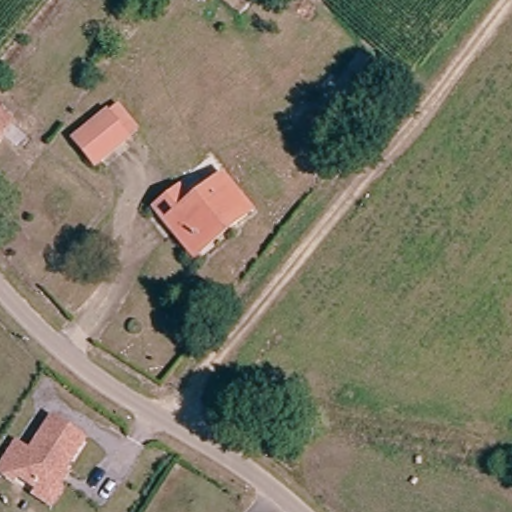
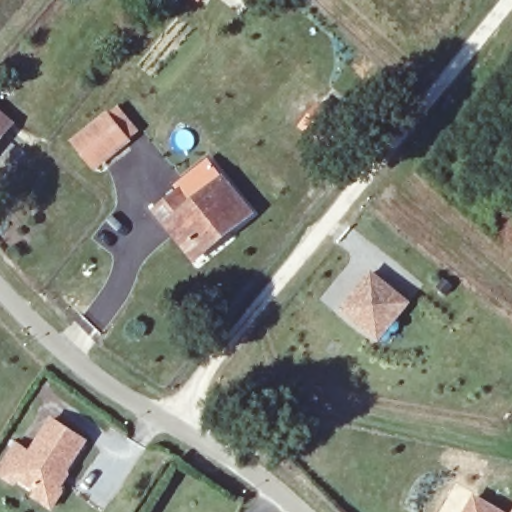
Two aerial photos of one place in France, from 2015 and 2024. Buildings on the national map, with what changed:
unchanged [(186,6),(179,0),(191,0),(186,6)]
unchanged [(347,116),(336,126),(312,100),(323,90),(347,116)]
unchanged [(77,148),(107,117),(116,108),(139,131),(130,140),(100,171),(77,148)]
unchanged [(0,129),(0,112),(8,118),(0,129)]
unchanged [(160,226),(149,215),(172,189),(184,200),(211,171),(248,207),(230,226),(197,261),(160,226)]
new [(375,331),(346,309),(374,273),(410,301),(397,317),(382,337),(375,331)]
unchanged [(41,496),(45,489),(23,477),(19,483),(4,475),(20,446),(34,454),(56,417),(90,436),(62,485),(68,488),(58,506),(41,496)]
new [(501,512),(465,512),(473,497),(501,512)]

